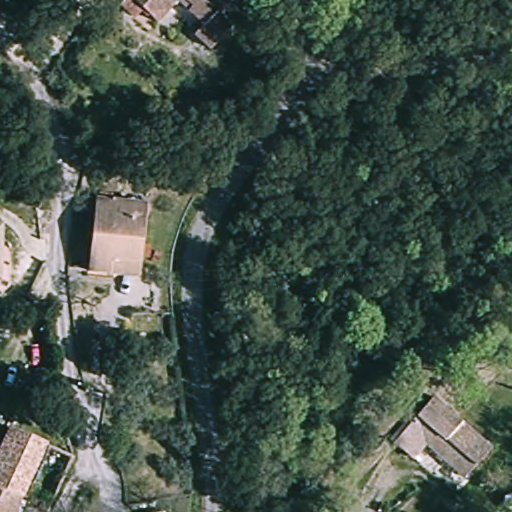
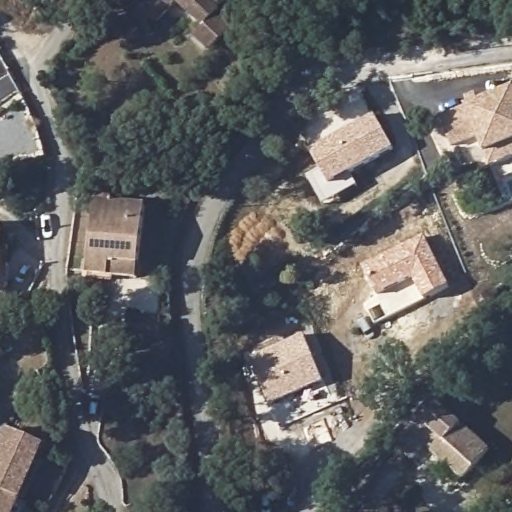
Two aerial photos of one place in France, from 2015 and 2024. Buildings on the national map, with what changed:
unchanged [(237,35),(216,55),(198,36),(208,28),(186,3),(163,21),(155,11),(142,21),(125,2),(128,0),(208,0),(237,35)]
new [(466,107),(512,88),(512,161),(490,169),(483,155),(476,137),(436,155),(423,125),(466,107)]
unchanged [(176,111),(204,104),(208,124),(181,130),(176,111)]
new [(375,115),(395,149),(351,175),(357,186),(324,205),(307,177),(320,169),(309,153),(375,115)]
unchanged [(108,275),(86,272),(96,200),(146,206),(138,262),(136,279),(108,275)]
unchanged [(11,281),(0,292),(0,236),(8,243),(11,281)]
new [(451,287),(425,300),(415,280),(379,297),(361,266),(424,236),(451,287)]
new [(323,381),(270,404),(250,356),(303,333),(323,381)]
unchanged [(426,444),(411,460),(390,440),(434,395),(492,450),(465,480),(426,444)]
unchanged [(35,497),(0,479),(23,431),(56,446),(35,497)]
unchanged [(0,512),(0,479),(35,497),(29,512),(0,512)]

